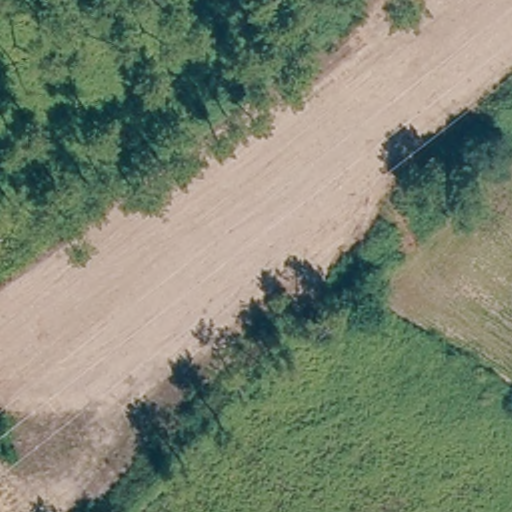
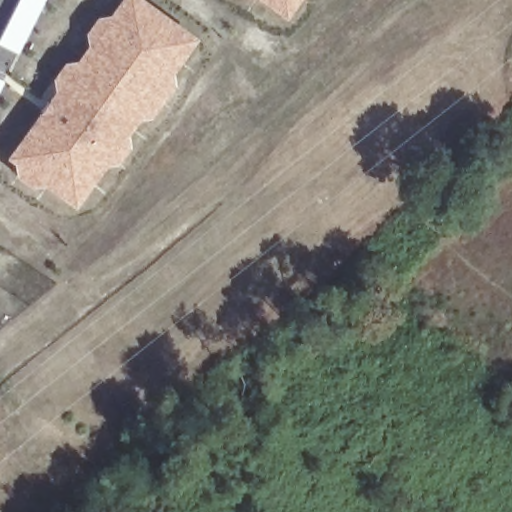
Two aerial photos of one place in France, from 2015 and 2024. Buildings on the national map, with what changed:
new [(18,54),(0,45),(0,38),(19,0),(45,0),(18,54)]
new [(197,40),(173,74),(175,86),(152,118),(139,121),(127,137),(129,149),(117,166),(106,167),(76,212),(44,188),(32,188),(14,178),(14,165),(5,159),(54,95),(52,79),(63,63),(74,63),(86,50),(84,33),(97,16),(109,17),(122,0),(140,0),(197,40)]
new [(285,20),(259,0),(301,0),(285,20)]
new [(5,81),(0,93),(0,79),(5,81)]

